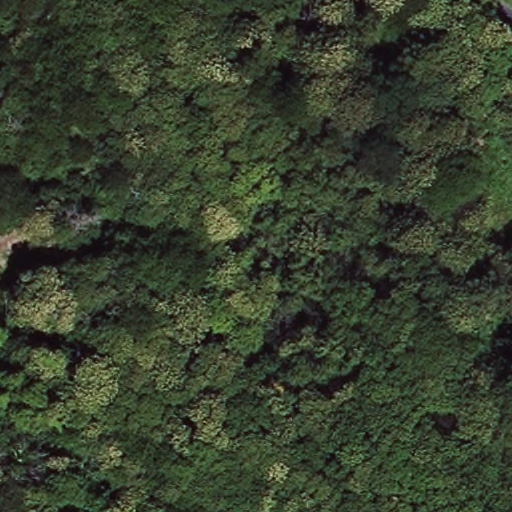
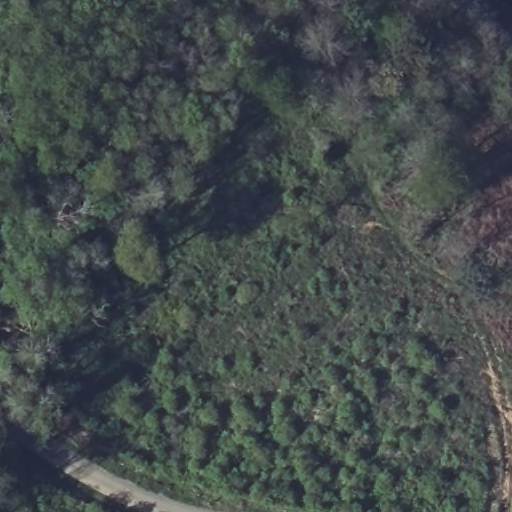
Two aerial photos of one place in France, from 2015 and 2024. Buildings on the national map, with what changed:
[]

